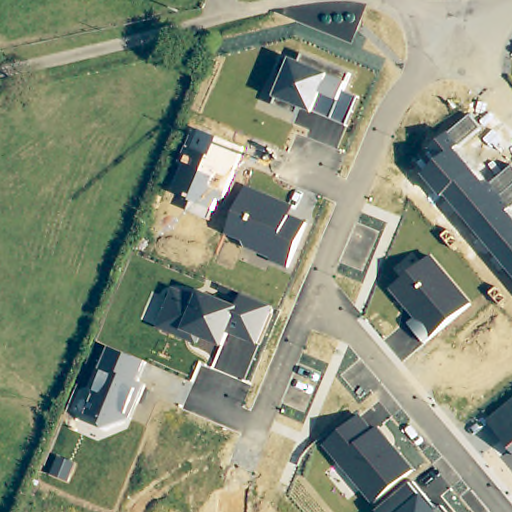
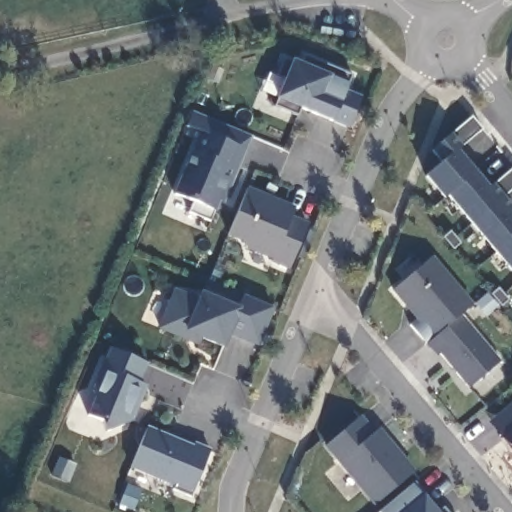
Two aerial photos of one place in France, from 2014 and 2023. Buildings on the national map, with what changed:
unchanged [(314,115),(300,109),(297,116),(274,107),(275,99),(290,60),(300,63),(303,55),(351,74),(344,92),(360,97),(347,127),(314,115)]
new [(200,132),(184,125),(190,110),(253,136),(245,149),(200,132)]
unchanged [(441,195),(425,175),(440,162),(430,150),(448,135),(470,117),(481,130),(458,150),(489,187),(512,169),(512,210),(511,212),(512,213),(512,273),(444,193),(441,195)]
unchanged [(207,220),(187,212),(192,202),(173,194),(200,132),(245,149),(224,200),(218,197),(213,210),(207,220)]
unchanged [(272,262),(269,257),(247,249),(244,242),(230,237),(248,189),(296,207),(292,218),(308,224),(289,267),(272,262)]
unchanged [(409,323),(415,318),(392,291),(433,257),(472,303),(428,341),(409,323)]
unchanged [(201,340),(198,345),(159,328),(175,288),(199,297),(201,293),(239,307),(243,295),(274,307),(258,344),(227,333),(223,346),(201,340)]
new [(468,387),(440,353),(435,358),(425,344),(428,341),(459,315),(501,363),(468,387)]
unchanged [(103,427),(88,417),(110,348),(144,362),(137,382),(144,384),(131,420),(103,427)]
unchanged [(512,403),(512,451),(489,425),(512,403)]
unchanged [(326,446),(361,416),(375,431),(379,427),(415,471),(375,503),(326,446)]
new [(193,446),(194,442),(211,451),(191,496),(173,490),(175,485),(129,467),(147,426),(193,446)]
unchanged [(415,482),(438,512),(380,512),(415,482)]
unchanged [(443,507),(447,512),(438,512),(443,507)]

